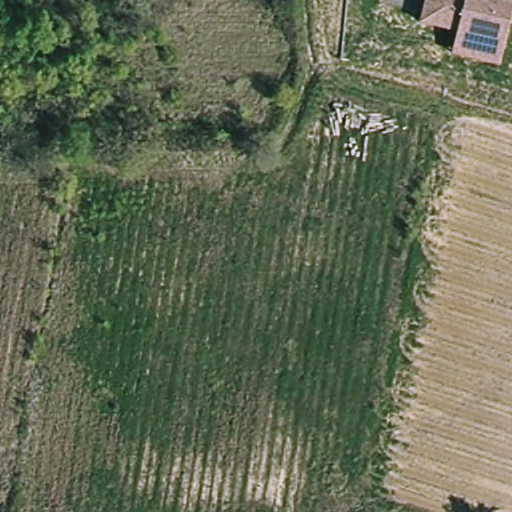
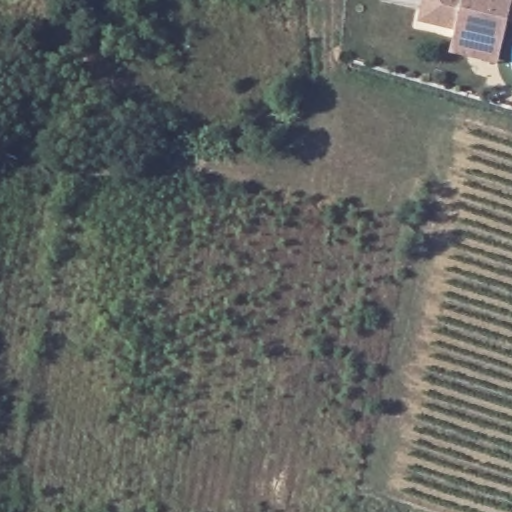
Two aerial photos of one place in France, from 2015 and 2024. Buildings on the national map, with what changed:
unchanged [(455,40),(457,32),(420,23),(425,0),(503,0),(512,2),(512,24),(509,24),(505,43),(500,65),(452,55),(455,40)]

